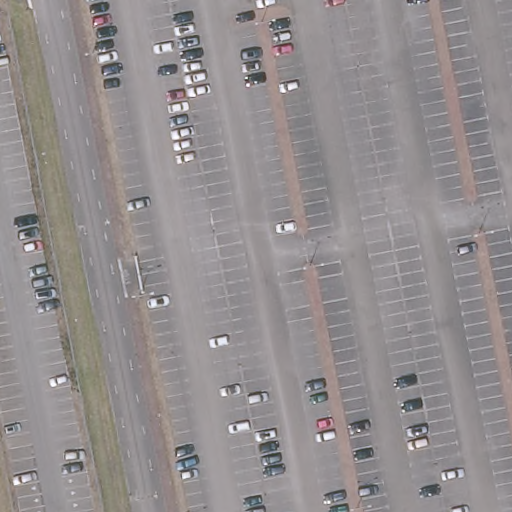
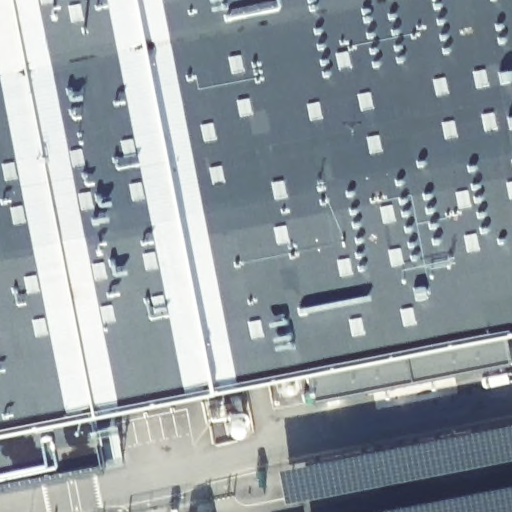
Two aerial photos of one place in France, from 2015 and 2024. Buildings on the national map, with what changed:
new [(506,332),(511,362),(311,399),(308,371),(94,413),(105,468),(0,488),(0,0),(512,0),(512,331),(506,332)]

